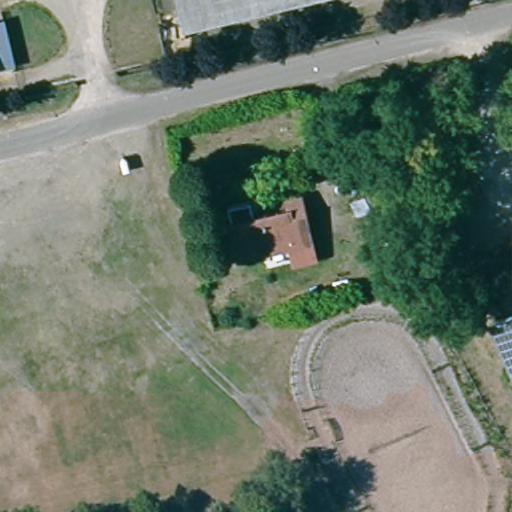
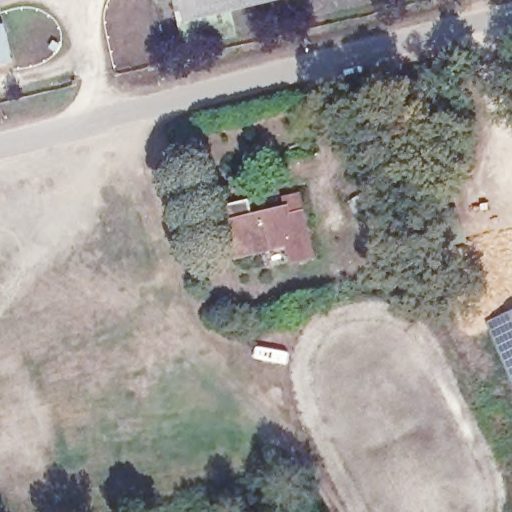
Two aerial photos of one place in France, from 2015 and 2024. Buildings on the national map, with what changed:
unchanged [(204,6),(205,11),(188,15),(184,0),(231,0),(204,6)]
unchanged [(243,221),(239,205),(262,200),(266,216),(296,209),(293,195),(307,191),(309,191),(324,254),(302,259),(298,243),(251,255),(242,221),(243,221)]
unchanged [(512,374),(489,322),(512,310),(512,374)]

